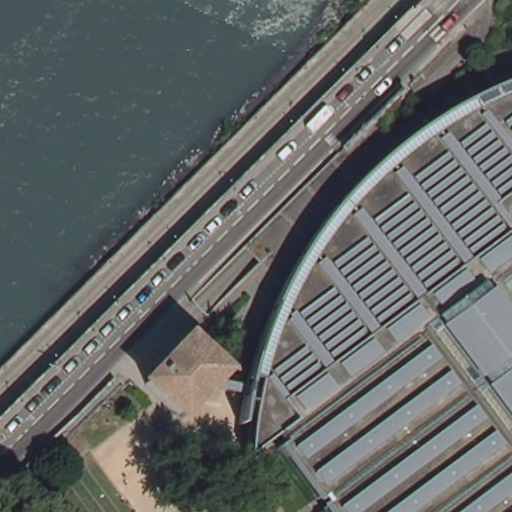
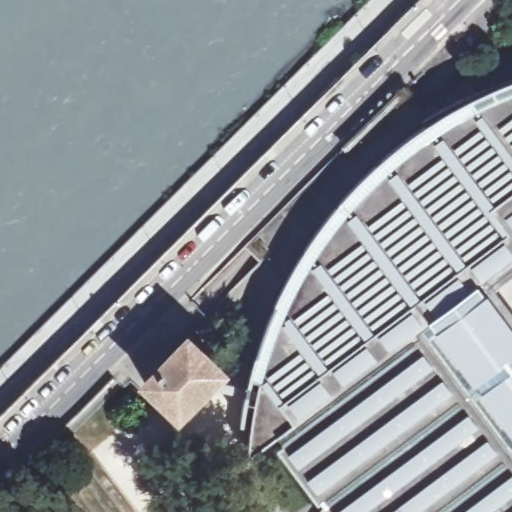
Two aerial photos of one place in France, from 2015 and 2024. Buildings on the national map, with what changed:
unchanged [(278,430),(248,453),(250,430),(256,396),(205,382),(178,409),(146,378),(187,335),(221,367),(213,374),(247,383),(249,376),(262,332),(278,291),(285,279),(246,241),(376,112),(403,84),(407,88),(440,111),(455,103),(483,89),(512,76),(512,512),(338,512),(284,439),(278,430)]
unchanged [(327,512),(276,445),(284,439),(338,512),(327,512)]

